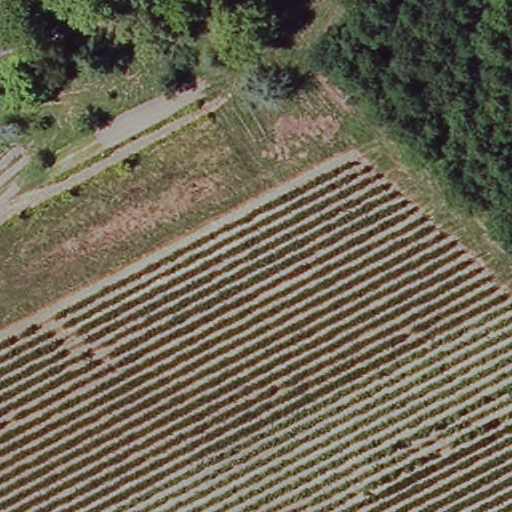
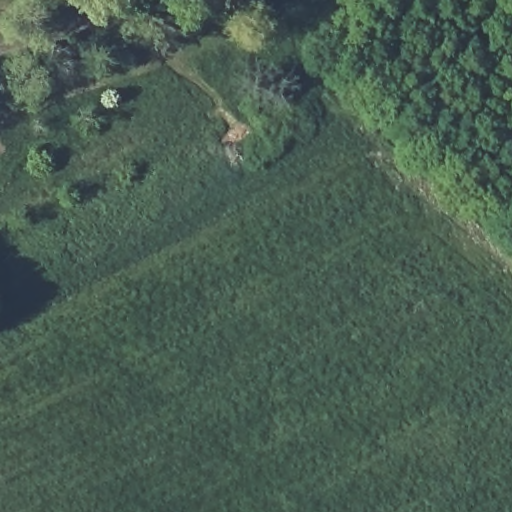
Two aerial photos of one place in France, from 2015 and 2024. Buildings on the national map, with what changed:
[]

